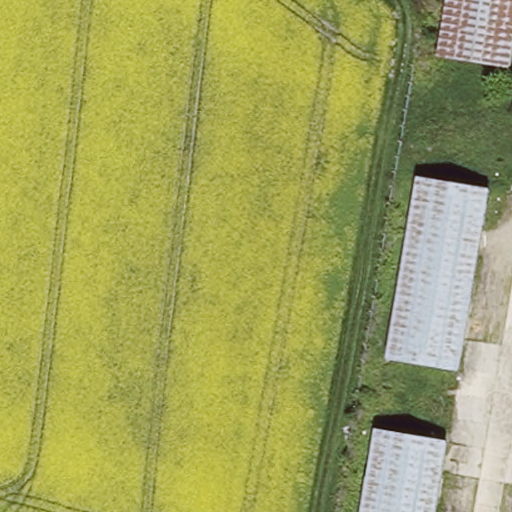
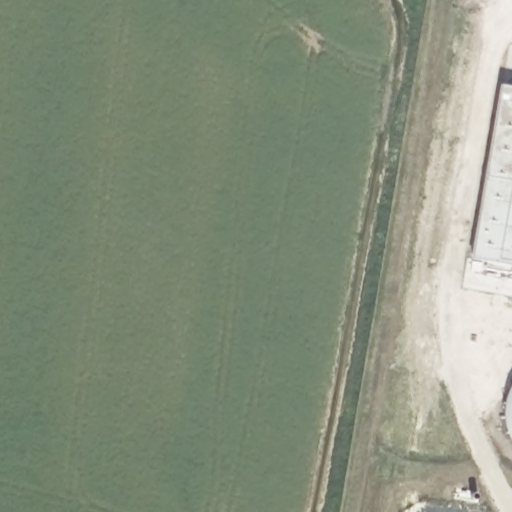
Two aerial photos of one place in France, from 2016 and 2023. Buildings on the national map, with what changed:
demolished [(438,60),(448,0),(512,0),(512,63),(510,75),(438,60)]
new [(501,85),(512,86),(512,264),(473,258),(501,85)]
demolished [(387,364),(417,179),(492,192),(459,377),(387,364)]
demolished [(438,512),(362,512),(376,432),(450,443),(438,512)]

